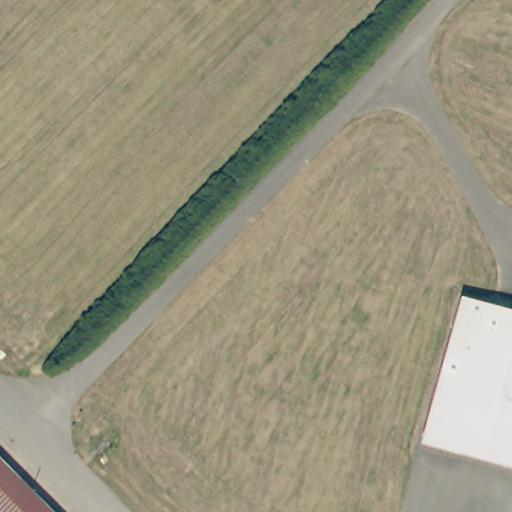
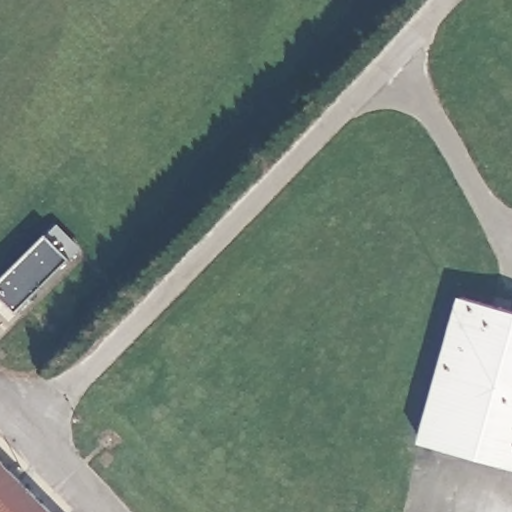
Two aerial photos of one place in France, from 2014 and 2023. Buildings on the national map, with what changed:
new [(58,225),(81,248),(71,258),(18,311),(0,293),(0,283),(47,235),(58,225)]
unchanged [(512,470),(423,446),(462,301),(512,314),(512,470)]
unchanged [(52,512),(19,512),(18,511),(9,502),(24,486),(34,494),(52,512)]
unchanged [(9,502),(18,511),(19,512),(0,512),(0,492),(9,502)]

